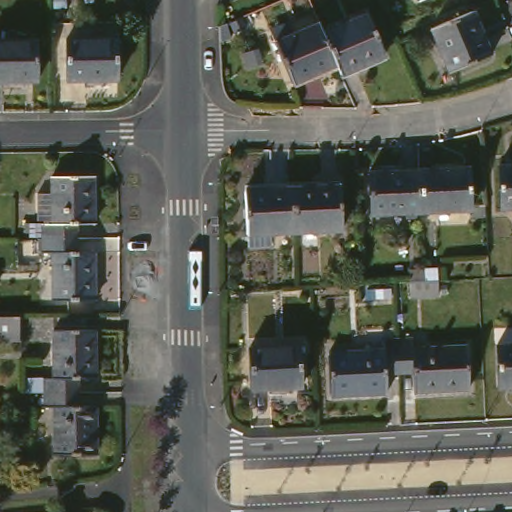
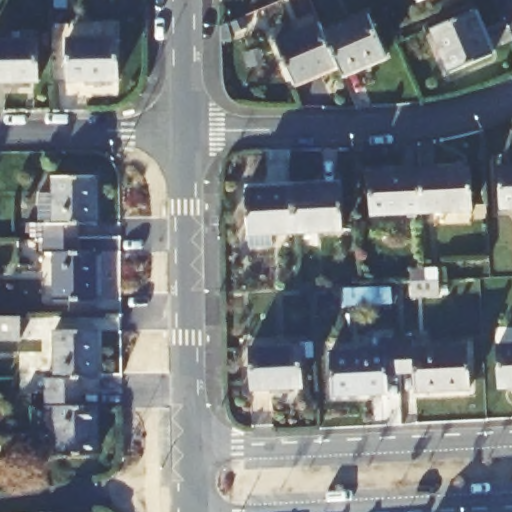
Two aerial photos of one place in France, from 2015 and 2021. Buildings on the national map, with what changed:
unchanged [(478,11),(496,56),(453,73),(434,28),(478,11)]
unchanged [(340,66),(327,33),(371,15),(388,57),(344,75),(340,66)]
unchanged [(340,66),(297,84),(279,42),(323,24),(327,33),(340,66)]
unchanged [(126,38),(128,80),(77,81),(77,39),(126,38)]
unchanged [(41,84),(0,85),(0,43),(40,42),(41,84)]
unchanged [(504,205),(503,162),(512,162),(512,205),(504,205)]
unchanged [(424,166),(474,164),(476,206),(426,208),(424,166)]
unchanged [(426,208),(376,211),(374,169),(424,166),(426,208)]
unchanged [(51,227),(63,227),(63,221),(48,222),(46,194),(63,194),(63,179),(103,178),(104,225),(89,226),(80,226),(81,238),(52,239),(51,227)]
unchanged [(298,188),(343,186),(346,230),(300,233),(298,188)]
unchanged [(300,233),(275,235),(275,249),(254,250),(254,236),(251,236),(249,190),(298,188),(300,233)]
unchanged [(81,238),(81,253),(89,253),(104,252),(105,300),(63,301),(61,253),(53,253),(52,239),(81,238)]
unchanged [(411,299),(411,284),(409,269),(424,268),(437,268),(438,282),(439,297),(411,299)]
unchanged [(19,340),(0,341),(0,318),(19,317),(19,340)]
unchanged [(49,393),(49,380),(58,380),(58,331),(99,330),(100,379),(77,380),(78,393),(49,393)]
unchanged [(404,339),(416,338),(417,350),(471,347),(474,389),(419,393),(417,374),(406,374),(404,339)]
unchanged [(406,374),(390,375),(391,394),(337,397),(334,354),(389,351),(389,340),(404,339),(406,374)]
unchanged [(305,387),(257,390),(255,348),(304,345),(305,387)]
unchanged [(504,389),(502,346),(512,346),(512,389),(504,389)]
unchanged [(78,393),(78,407),(102,406),(103,453),(59,454),(57,407),(49,407),(49,393),(78,393)]

